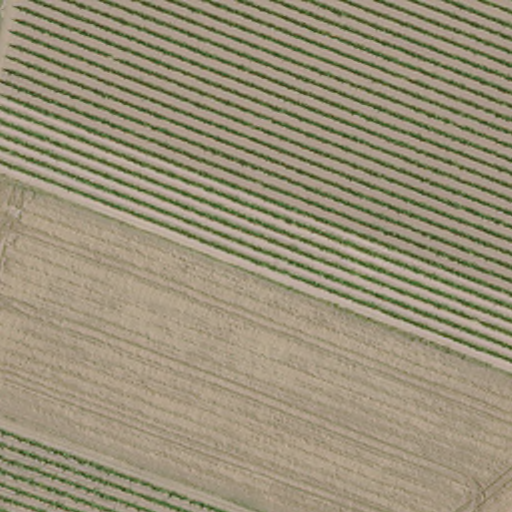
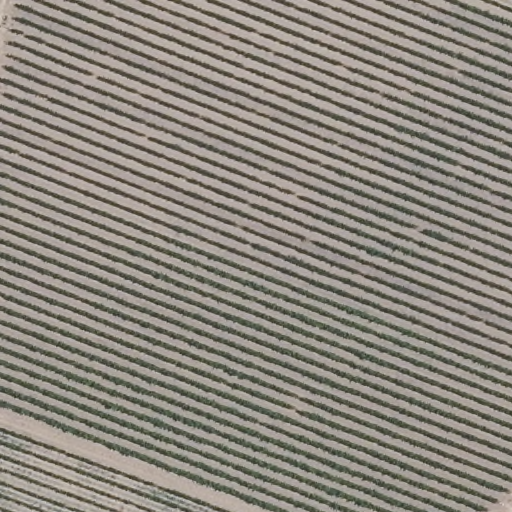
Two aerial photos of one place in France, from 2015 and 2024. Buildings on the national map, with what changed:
[]

